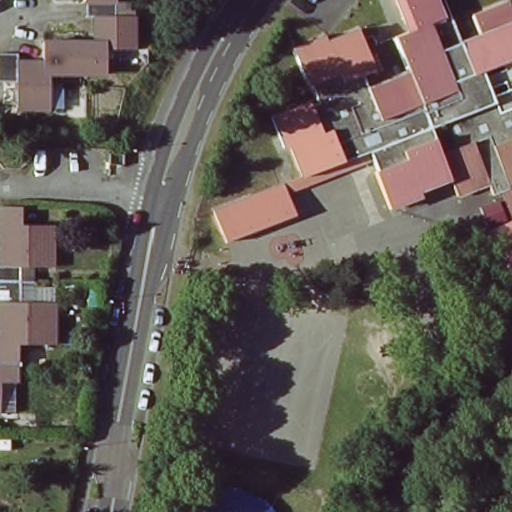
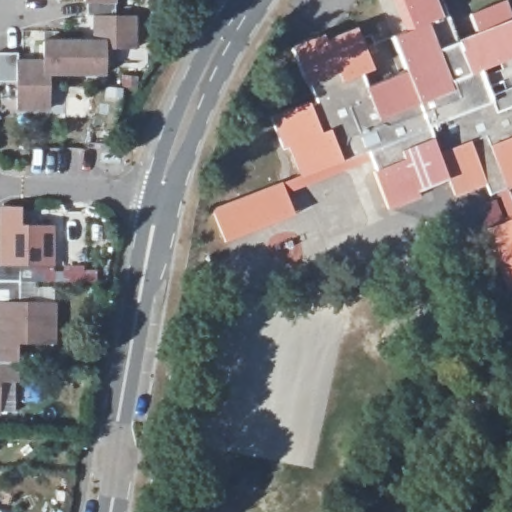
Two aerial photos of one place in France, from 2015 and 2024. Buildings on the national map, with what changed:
unchanged [(94,39),(93,14),(85,14),(85,0),(114,0),(114,15),(131,15),(132,46),(104,47),(104,75),(73,75),(73,39),(94,39)]
unchanged [(512,55),(457,76),(468,102),(501,89),(505,100),(512,97),(512,180),(483,191),(480,182),(450,192),(444,177),(413,187),(415,193),(382,205),(368,169),(370,167),(363,149),(297,176),(285,145),(280,147),(266,115),(304,101),(305,102),(314,99),(305,80),(302,82),(287,45),(319,34),(321,37),(351,26),(367,66),(355,71),(361,85),(403,68),(390,36),(403,31),(392,0),(431,0),(437,17),(444,16),(454,42),(474,34),(466,14),(499,0),(512,32),(512,55)]
unchanged [(73,75),(50,75),(51,107),(17,108),(17,82),(0,82),(0,51),(18,52),(18,60),(41,60),(41,39),(73,39),(73,75)]
unchanged [(288,213),(219,240),(207,207),(276,182),(288,213)]
unchanged [(0,205),(20,206),(20,222),(55,224),(55,265),(19,263),(18,280),(0,279),(0,214),(0,205)]
unchanged [(512,288),(504,292),(479,227),(512,214),(512,288)]
unchanged [(18,280),(17,300),(53,302),(52,342),(17,340),(16,360),(0,359),(0,279),(18,280)]
unchanged [(15,379),(0,378),(0,359),(16,360),(15,379)]

